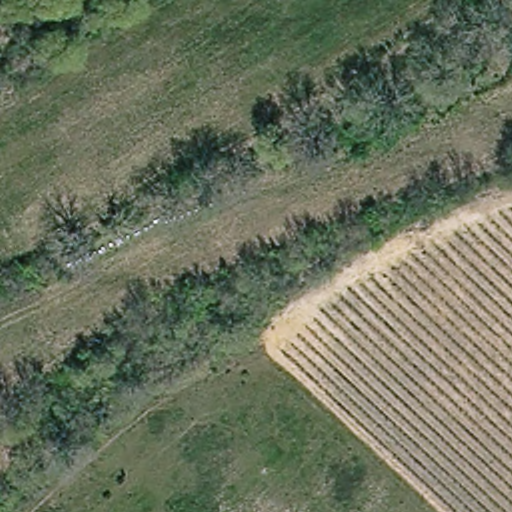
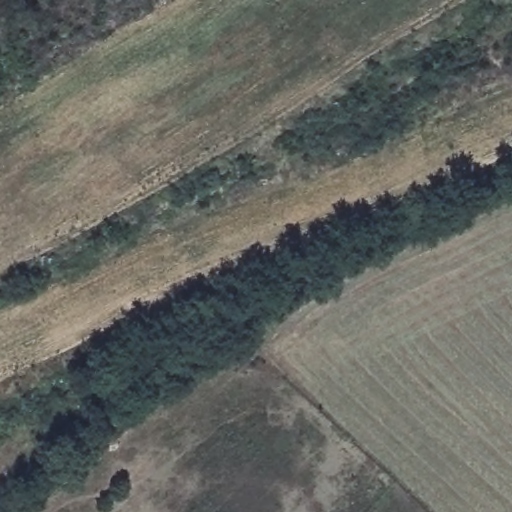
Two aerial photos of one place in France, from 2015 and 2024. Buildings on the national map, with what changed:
[]

